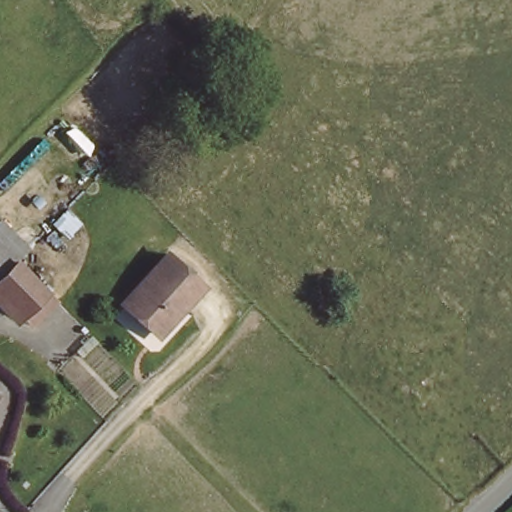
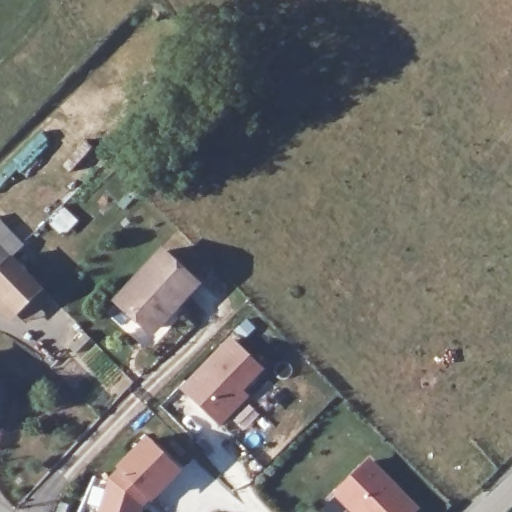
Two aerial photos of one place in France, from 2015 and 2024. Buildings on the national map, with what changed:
unchanged [(84,242),(63,259),(40,233),(62,214),(84,242)]
unchanged [(14,259),(0,274),(0,221),(26,248),(14,259)]
unchanged [(201,282),(184,304),(178,299),(151,331),(120,304),(167,251),(201,282)]
unchanged [(0,274),(14,259),(44,290),(27,306),(17,315),(0,298),(0,274)]
new [(228,335),(265,369),(245,392),(248,395),(220,426),(177,388),(228,335)]
new [(113,466),(146,435),(181,471),(150,502),(145,497),(141,512),(97,512),(107,476),(113,466)]
new [(372,462),(417,509),(414,512),(358,512),(339,493),(372,462)]

